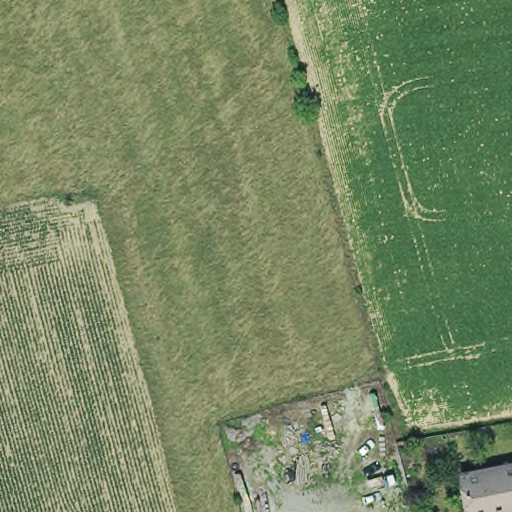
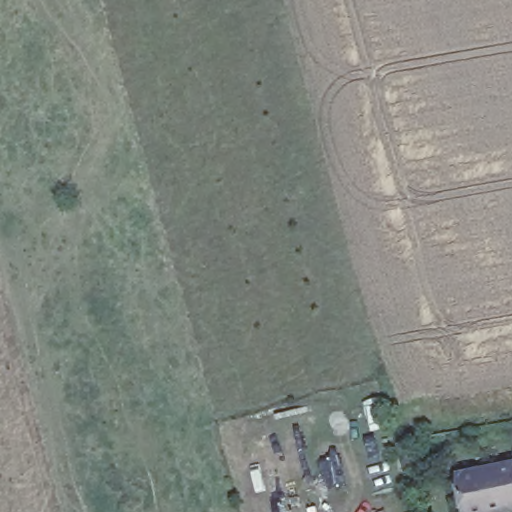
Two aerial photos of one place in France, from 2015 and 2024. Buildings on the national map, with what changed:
unchanged [(512,462),(512,508),(492,512),(471,512),(470,508),(462,473),(512,462)]

